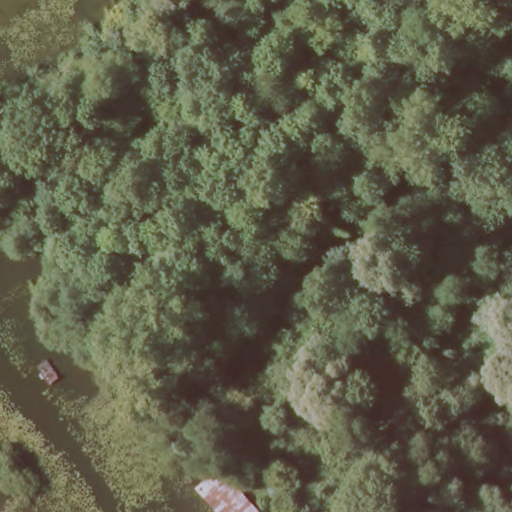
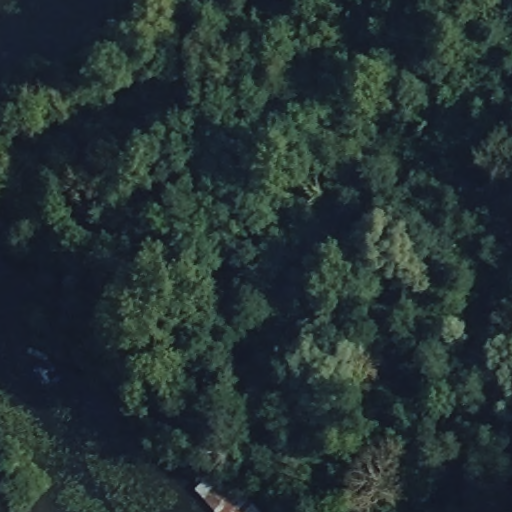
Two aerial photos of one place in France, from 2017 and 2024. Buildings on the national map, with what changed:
unchanged [(17,185),(15,165),(66,165),(67,194),(17,185)]
unchanged [(58,240),(48,262),(25,249),(37,232),(58,240)]

